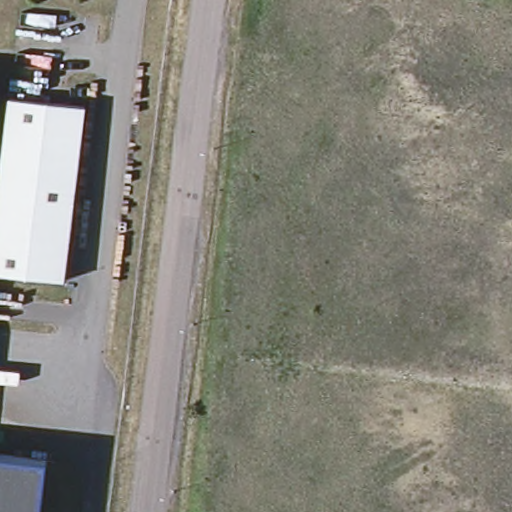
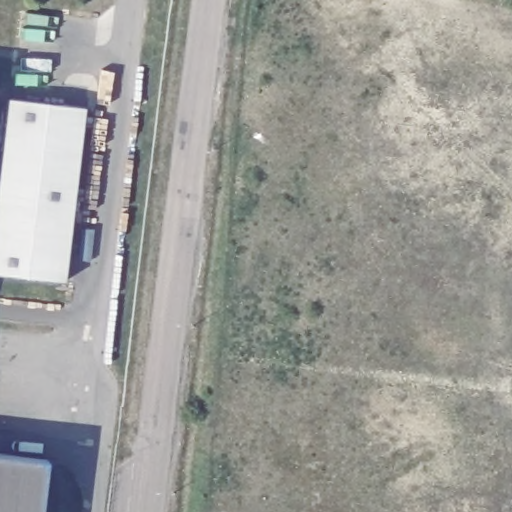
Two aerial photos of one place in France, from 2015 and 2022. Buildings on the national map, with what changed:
unchanged [(0,186),(11,96),(86,105),(65,280),(0,272),(0,186)]
unchanged [(39,498),(0,494),(0,454),(43,460),(39,498)]
unchanged [(37,512),(0,512),(0,494),(39,498),(37,512)]

